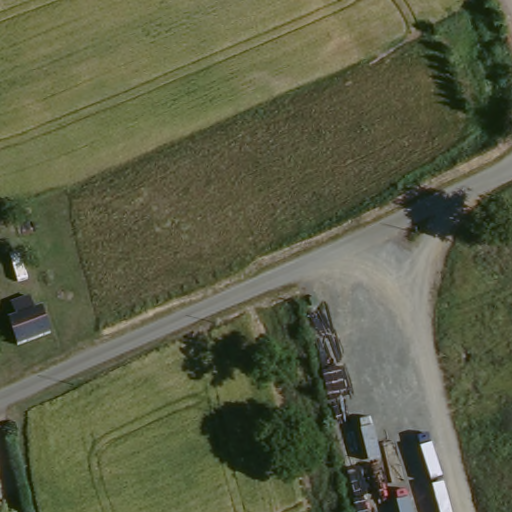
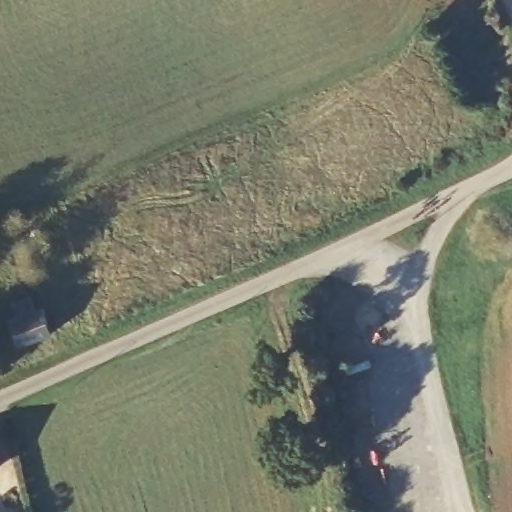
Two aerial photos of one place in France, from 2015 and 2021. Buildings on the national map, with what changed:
unchanged [(44,305),(53,331),(21,343),(11,319),(44,305)]
unchanged [(0,471),(0,428),(1,428),(13,467),(0,471)]

